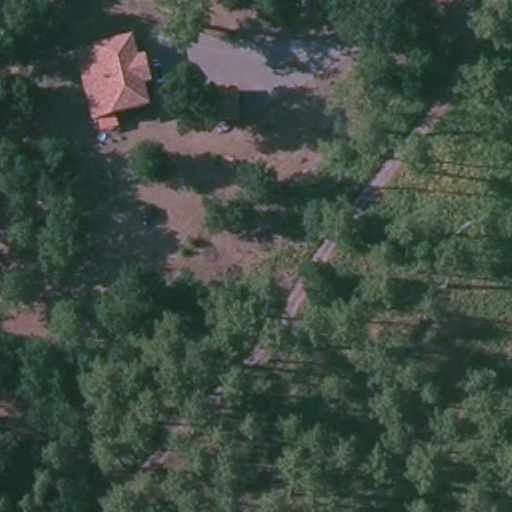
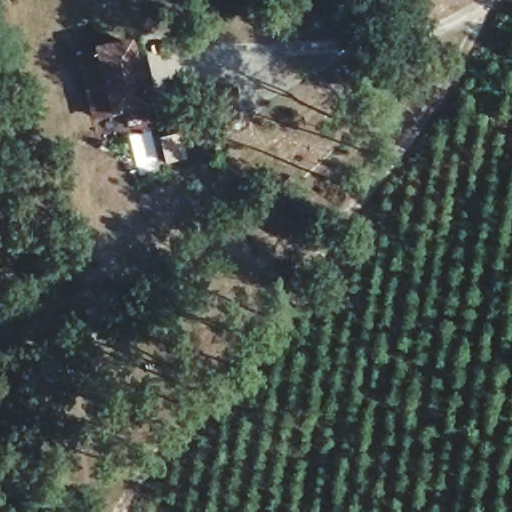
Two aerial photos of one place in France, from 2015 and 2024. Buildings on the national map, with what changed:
unchanged [(151,63),(157,83),(150,85),(156,106),(97,122),(80,60),(139,44),(145,65),(151,63)]
unchanged [(236,95),(237,115),(225,115),(224,95),(236,95)]

